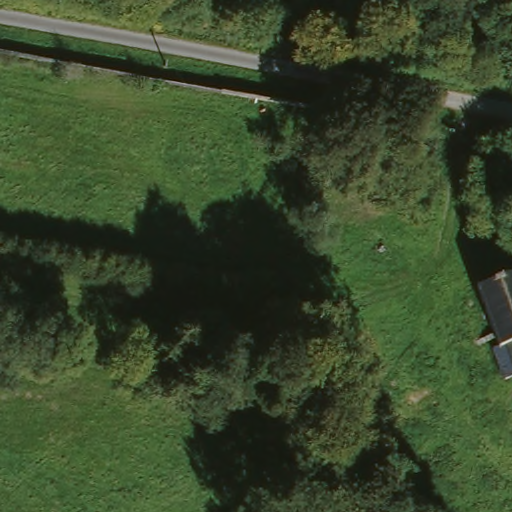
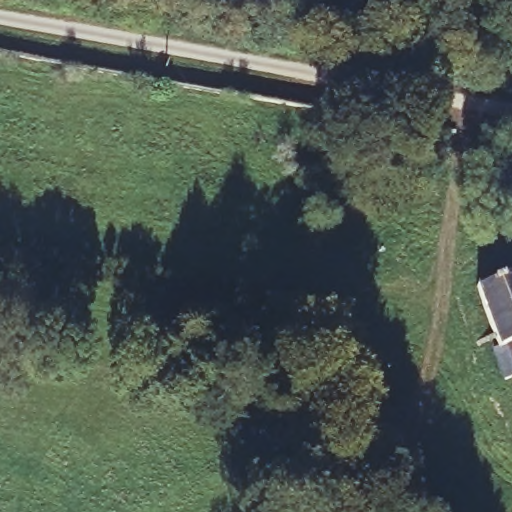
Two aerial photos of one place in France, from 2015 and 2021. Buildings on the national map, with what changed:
unchanged [(508,375),(497,340),(501,338),(499,333),(485,290),(512,281),(512,373),(508,375)]

